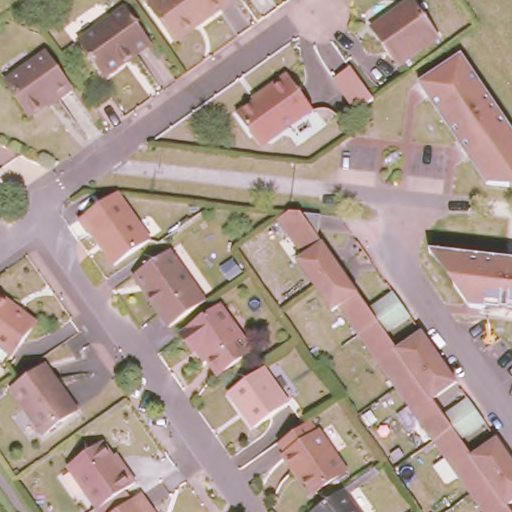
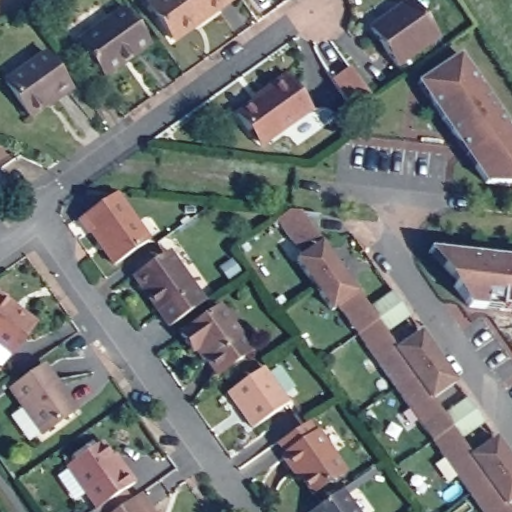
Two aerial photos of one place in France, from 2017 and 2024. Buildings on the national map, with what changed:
unchanged [(146,3),(150,0),(229,0),(203,19),(173,41),(171,37),(146,3)]
unchanged [(407,0),(411,0),(437,37),(397,66),(369,27),(407,0)]
unchanged [(76,41),(123,7),(148,42),(101,76),(76,41)]
unchanged [(43,105),(29,116),(3,81),(44,52),(71,90),(56,100),(45,109),(43,105)]
unchanged [(422,87),(449,70),(464,59),(512,129),(512,190),(490,187),(470,159),(462,147),(431,101),(422,87)]
unchanged [(248,132),(236,114),(252,102),(249,99),(271,84),(286,73),(311,109),(263,144),(259,147),(248,132)]
unchanged [(148,239),(113,264),(89,231),(87,232),(78,217),(116,192),(148,239)]
unchanged [(439,451),(432,440),(424,428),(364,344),(356,334),(336,305),(329,311),(295,259),(302,255),(276,219),(288,211),(319,214),(316,235),(366,307),(392,291),(409,315),(384,332),(396,347),(419,331),(456,382),(431,398),(442,412),(466,396),(484,422),(460,439),(471,454),(495,438),(512,462),(512,499),(506,503),(512,512),(482,512),(439,451)]
unchanged [(204,301),(168,326),(141,289),(131,275),(136,272),(168,250),(204,301)]
unchanged [(429,252),(512,261),(512,311),(468,306),(429,252)]
unchanged [(0,346),(0,295),(14,306),(34,321),(32,325),(10,354),(0,346)]
unchanged [(194,350),(191,352),(179,333),(218,306),(250,351),(217,374),(206,358),(201,361),(194,350)]
unchanged [(41,432),(9,388),(43,365),(75,408),(41,432)]
unchanged [(287,402),(252,427),(227,391),(262,367),(287,402)]
unchanged [(293,470),(283,455),(318,430),(344,469),(311,492),(301,478),(299,480),(293,470)]
unchanged [(96,507),(67,463),(100,441),(110,455),(115,452),(125,468),(134,481),(123,488),(130,499),(111,512),(90,512),(89,511),(96,507)]
unchanged [(357,512),(309,512),(341,489),(357,512)]
unchanged [(153,512),(111,512),(130,499),(139,492),(149,507),(153,512)]

